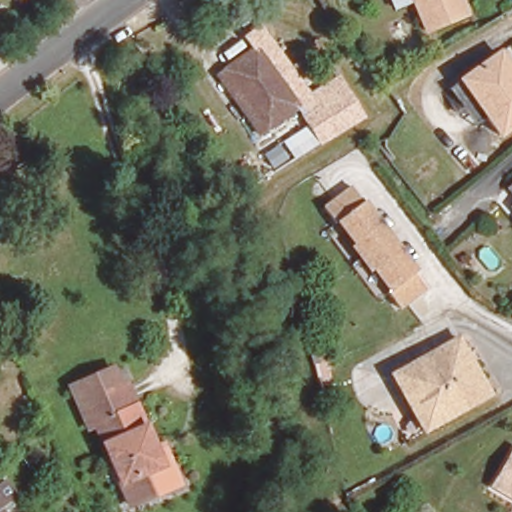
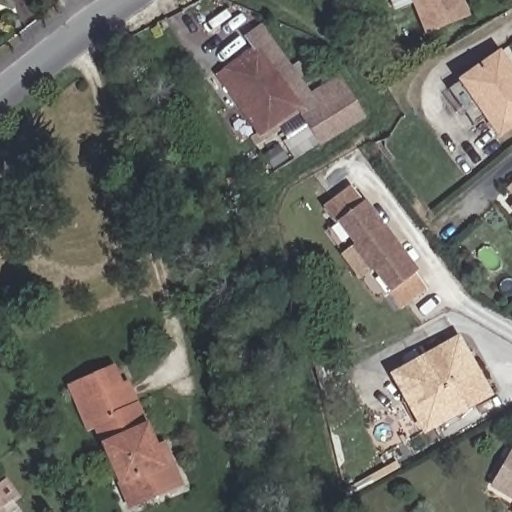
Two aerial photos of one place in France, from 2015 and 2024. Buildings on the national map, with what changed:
unchanged [(429,35),(415,0),(464,0),(471,17),(429,35)]
unchanged [(231,87),(221,74),(226,70),(255,48),(295,105),(296,107),(266,128),(262,131),(257,124),(251,116),(231,87)]
unchanged [(463,131),(458,124),(464,120),(451,102),(463,93),(500,66),(512,82),(512,141),(502,148),(489,130),(477,139),(468,127),(463,131)]
unchanged [(325,135),(314,117),(323,111),(320,106),(349,87),(351,90),(361,106),(368,116),(367,117),(355,124),(354,125),(340,133),(337,135),(329,141),(325,135)]
unchanged [(512,170),(512,186),(504,177),(512,170)]
unchanged [(325,209),(353,187),(366,201),(418,271),(429,287),(401,308),(389,293),(336,224),(325,209)]
unchanged [(512,193),(512,201),(508,197),(512,193)]
unchanged [(512,210),(512,211),(511,210),(512,210)]
unchanged [(396,372),(407,367),(459,337),(490,393),(438,422),(427,428),(396,372)]
unchanged [(166,463),(173,483),(125,505),(90,426),(83,428),(65,387),(99,372),(107,369),(114,387),(121,384),(133,412),(150,449),(158,446),(166,463)]
unchanged [(511,456),(512,456),(512,505),(490,492),(511,456)]
unchanged [(70,492),(60,497),(52,478),(62,474),(70,492)]
unchanged [(3,486),(15,502),(3,512),(0,512),(0,488),(3,486)]

